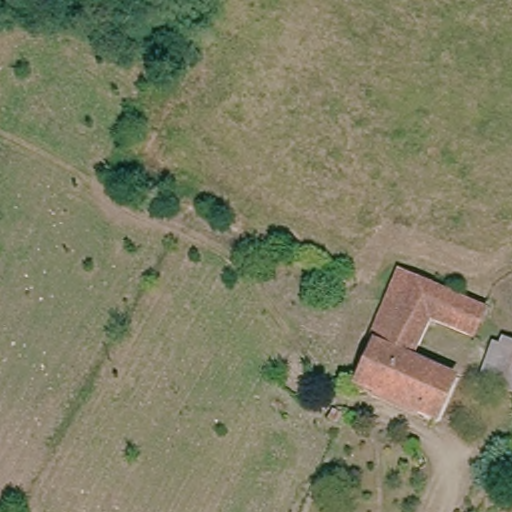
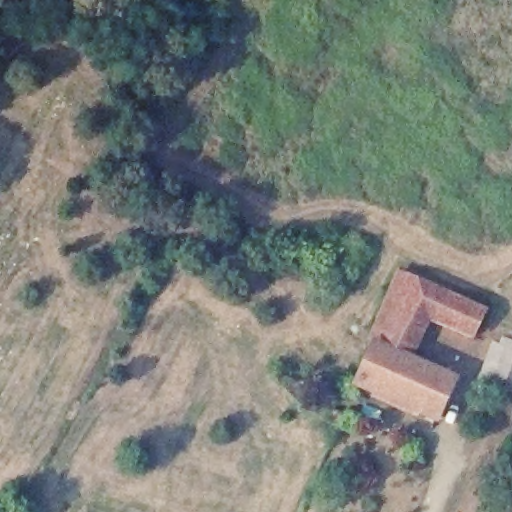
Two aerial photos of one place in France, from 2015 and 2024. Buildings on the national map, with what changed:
unchanged [(401,282),(413,258),(493,299),(482,322),(401,282)]
unchanged [(470,346),(432,327),(414,363),(455,383),(435,426),(351,383),(380,323),(401,282),(482,322),(470,346)]
unchanged [(507,345),(512,348),(512,395),(502,389),(488,381),(501,358),(507,345)]

